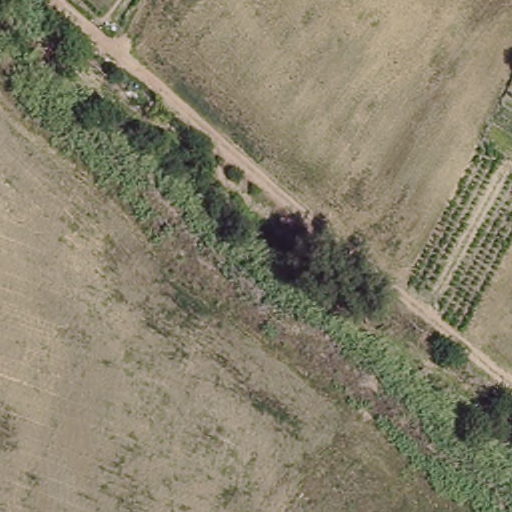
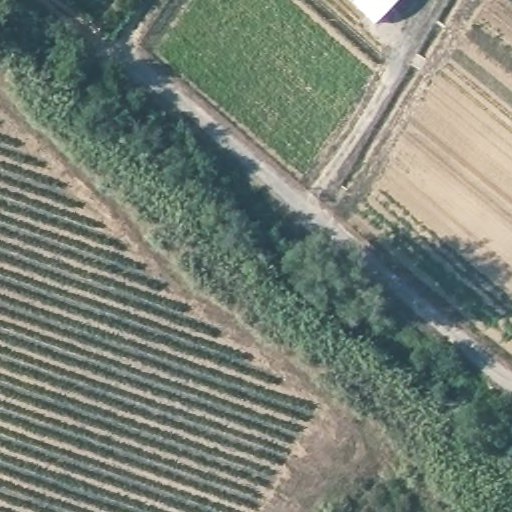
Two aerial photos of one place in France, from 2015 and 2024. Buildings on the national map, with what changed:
new [(375,23),(352,0),(398,0),(375,23)]

